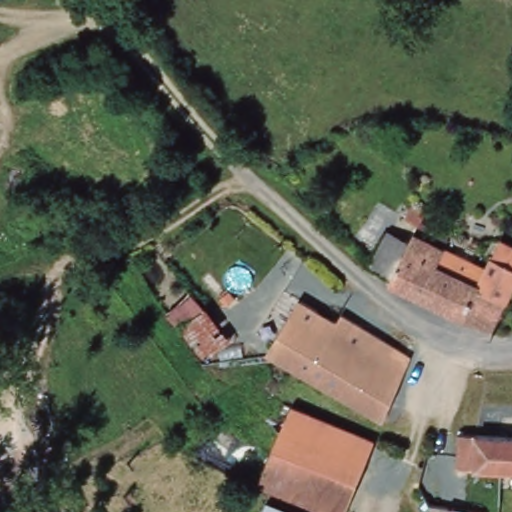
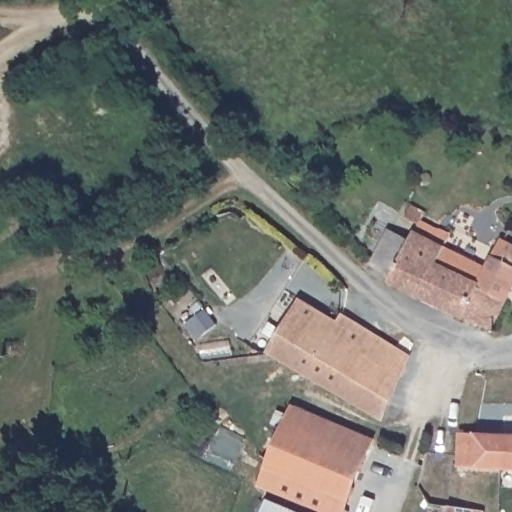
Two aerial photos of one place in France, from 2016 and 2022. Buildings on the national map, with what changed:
unchanged [(460,312),(412,290),(393,281),(396,273),(375,266),(388,230),(410,237),(414,223),(406,220),(412,204),(426,209),(422,220),(466,236),(461,254),(480,262),(486,250),(493,254),(500,239),(512,244),(512,291),(508,300),(495,327),(469,317),(460,312)]
unchanged [(192,300),(218,332),(197,348),(174,313),(192,300)]
unchanged [(300,302),(338,321),(343,315),(413,354),(385,418),(339,393),(270,355),(300,302)]
unchanged [(301,406),(372,435),(375,435),(347,512),(342,512),(290,491),(260,480),(291,402),(301,406)]
unchanged [(512,438),(512,471),(453,470),(455,435),(473,436),(512,438)]
unchanged [(305,512),(264,512),(269,498),(305,512)]
unchanged [(450,511),(460,512),(450,512),(450,511)]
unchanged [(475,511),(479,512),(475,512),(475,511)]

